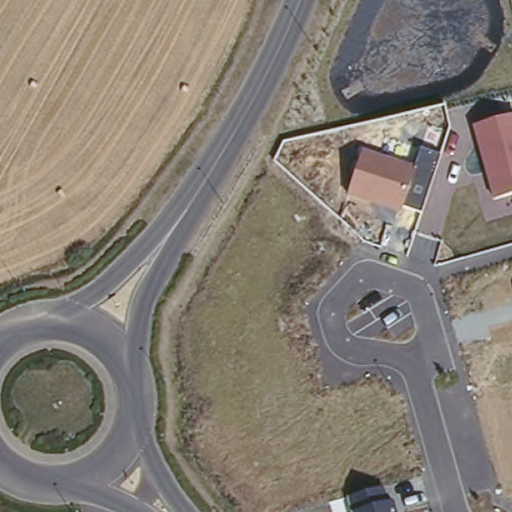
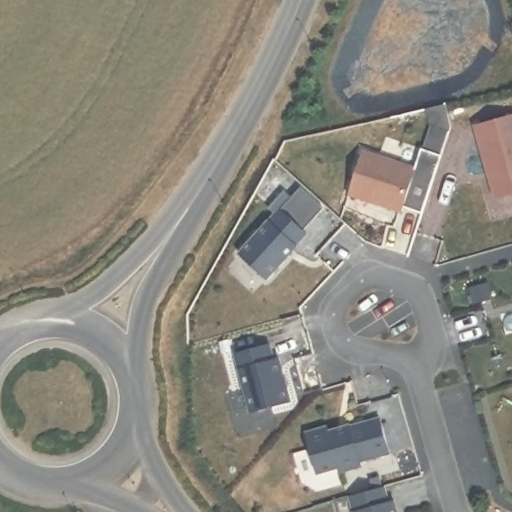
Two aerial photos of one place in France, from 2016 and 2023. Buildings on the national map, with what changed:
unchanged [(472,126),(512,115),(512,195),(494,199),(472,126)]
unchanged [(362,150),(413,166),(419,148),(441,156),(422,215),(402,208),(400,212),(347,195),(362,150)]
new [(280,206),(306,230),(296,242),(297,243),(266,276),(239,252),(280,206)]
new [(268,343),(272,359),(278,357),(290,401),(250,412),(234,352),(268,343)]
new [(328,425),(329,430),(351,424),(351,425),(381,416),(391,450),(361,459),(363,464),(341,470),(339,465),(318,471),(306,431),(328,425)]
unchanged [(350,496),(390,488),(396,512),(354,512),(350,496)]

